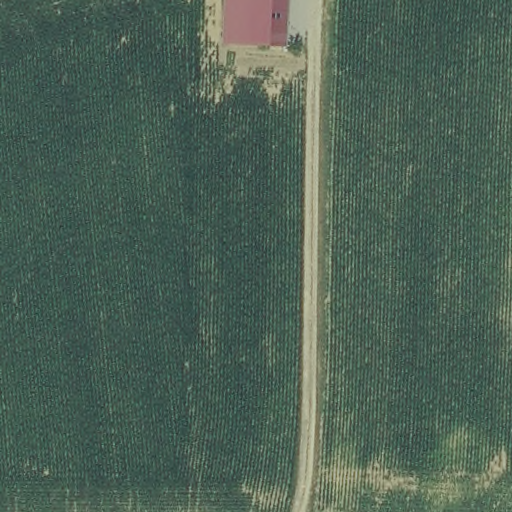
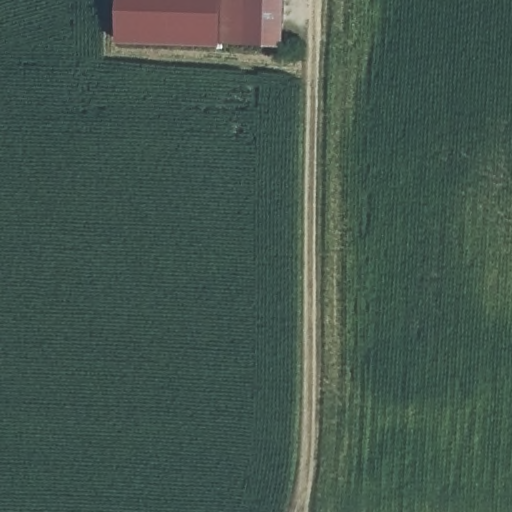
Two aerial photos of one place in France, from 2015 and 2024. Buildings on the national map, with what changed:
new [(217,45),(114,42),(115,0),(220,0),(217,45)]
unchanged [(226,0),(288,0),(287,44),(225,42),(226,0)]

